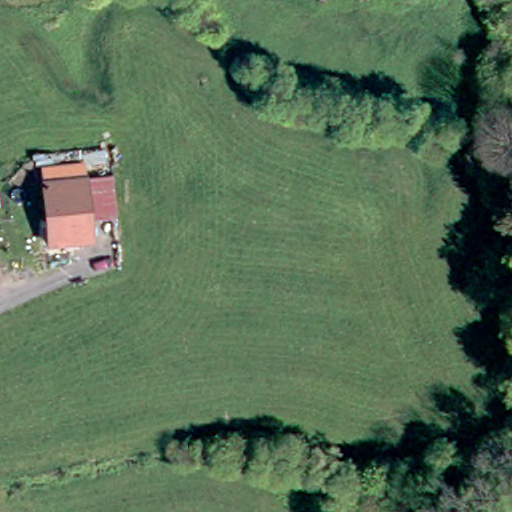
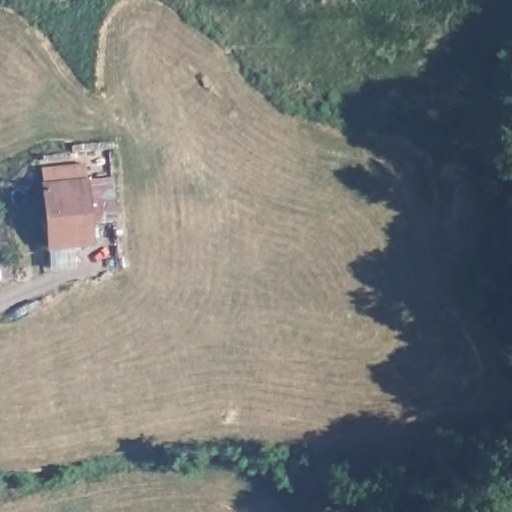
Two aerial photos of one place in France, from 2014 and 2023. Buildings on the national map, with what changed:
unchanged [(80,178),(85,242),(40,246),(33,183),(80,178)]

